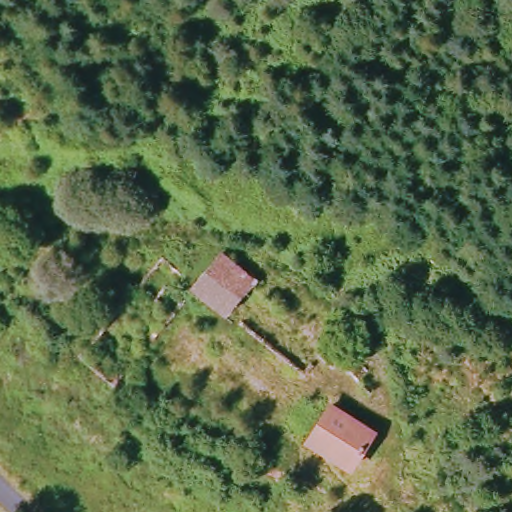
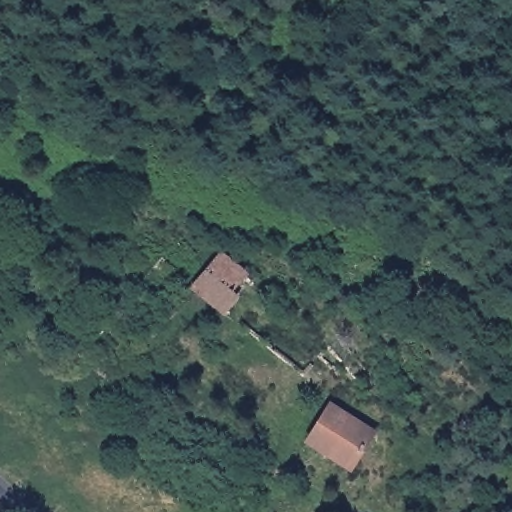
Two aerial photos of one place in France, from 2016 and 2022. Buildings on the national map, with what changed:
unchanged [(221,257),(259,286),(230,325),(189,296),(221,257)]
unchanged [(325,410),(368,437),(347,475),(302,448),(325,410)]

